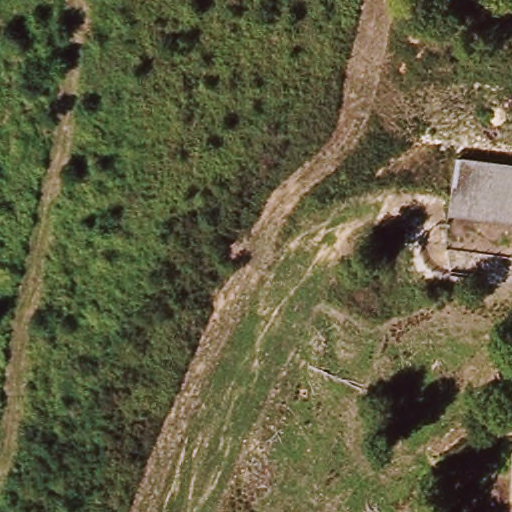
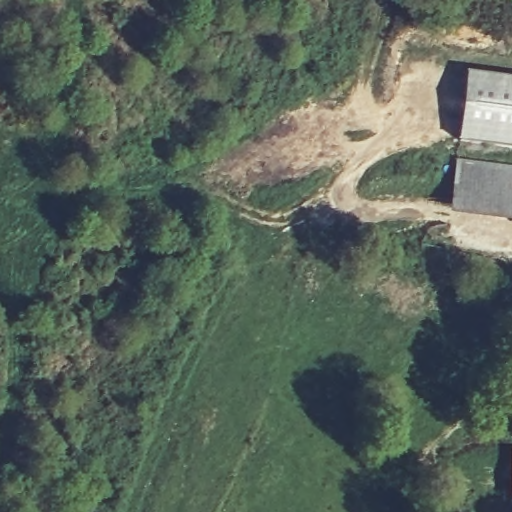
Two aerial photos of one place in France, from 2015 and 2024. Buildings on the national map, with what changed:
new [(467,72),(512,78),(512,149),(458,142),(467,72)]
unchanged [(458,171),(512,178),(512,218),(452,210),(458,171)]

